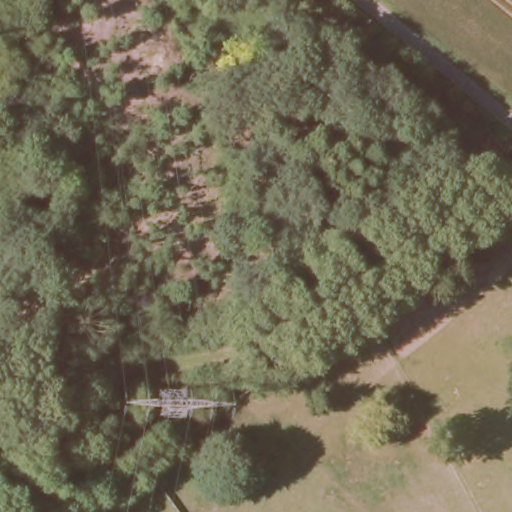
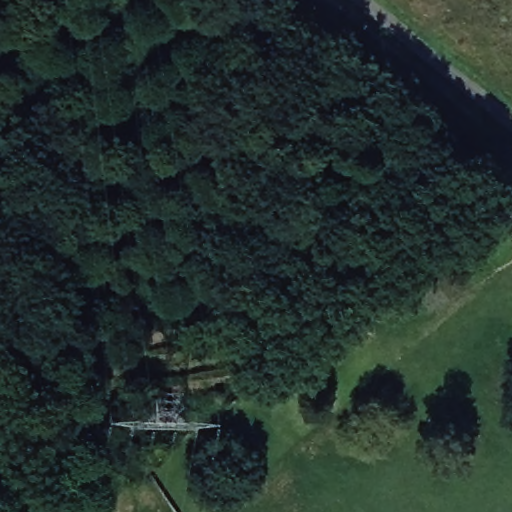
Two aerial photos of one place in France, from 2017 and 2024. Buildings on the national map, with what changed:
unchanged [(512,233),(510,235),(497,217),(512,207),(512,233)]

